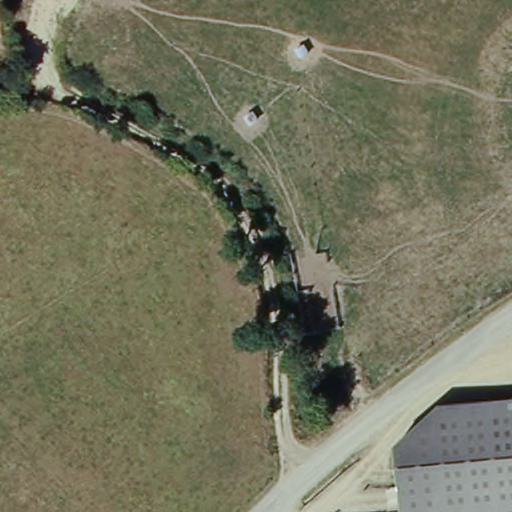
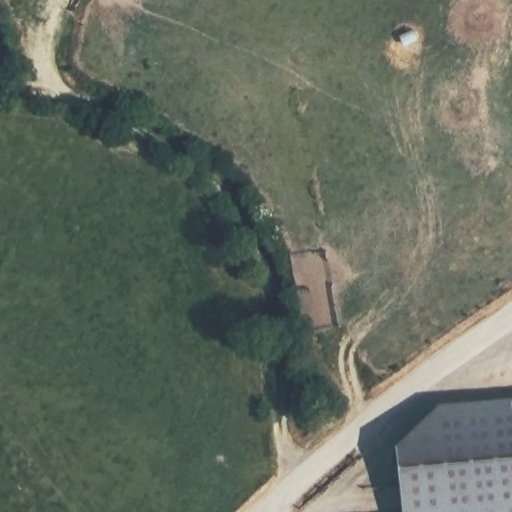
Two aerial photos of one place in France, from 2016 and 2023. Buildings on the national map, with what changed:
unchanged [(397,442),(444,406),(512,401),(512,512),(402,512),(397,442)]

